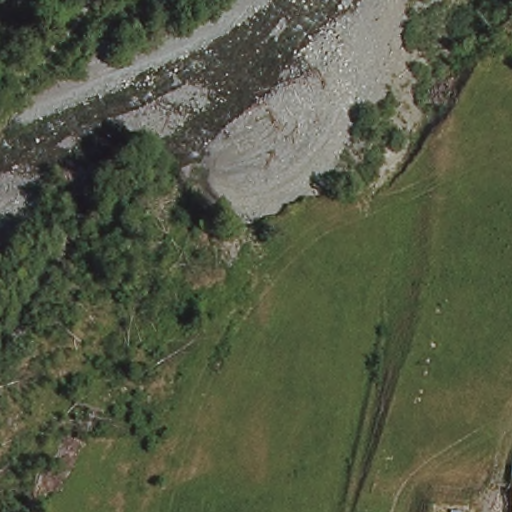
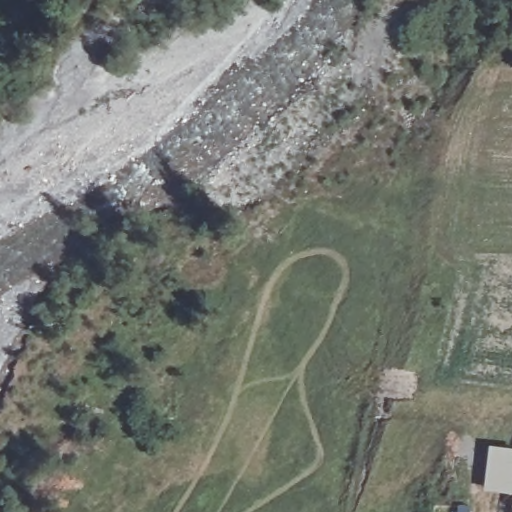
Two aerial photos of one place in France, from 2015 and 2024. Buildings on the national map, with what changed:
new [(490,444),(512,448),(512,494),(482,489),(490,444)]

